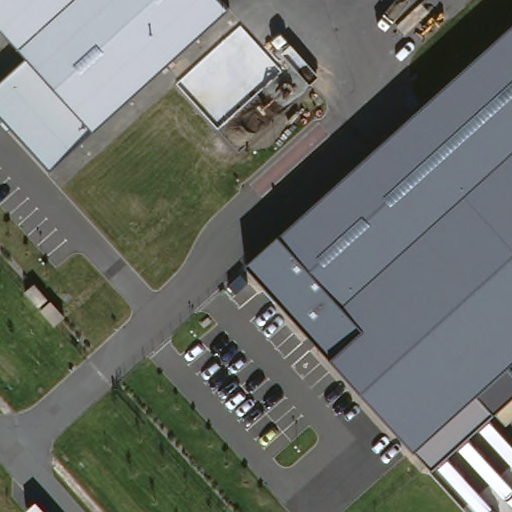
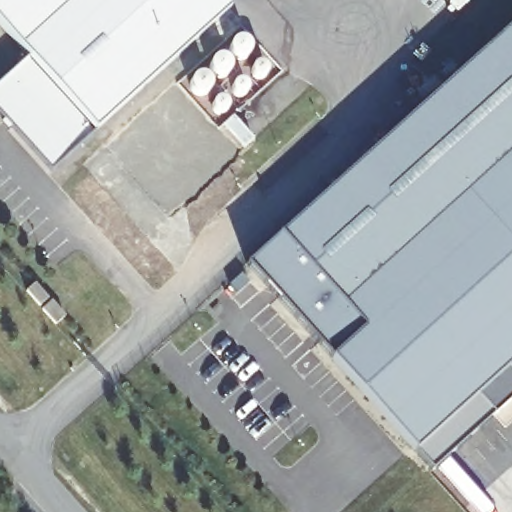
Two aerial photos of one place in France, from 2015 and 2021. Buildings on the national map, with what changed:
unchanged [(228,9),(91,130),(53,167),(0,108),(0,82),(27,59),(0,27),(0,0),(220,0),(228,9)]
unchanged [(512,23),(512,361),(415,449),(244,267),(512,23)]

